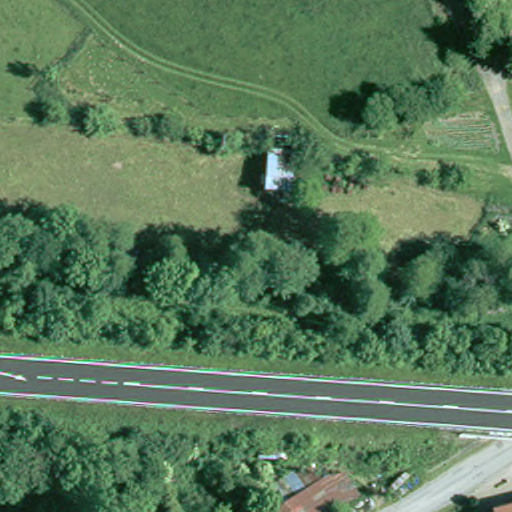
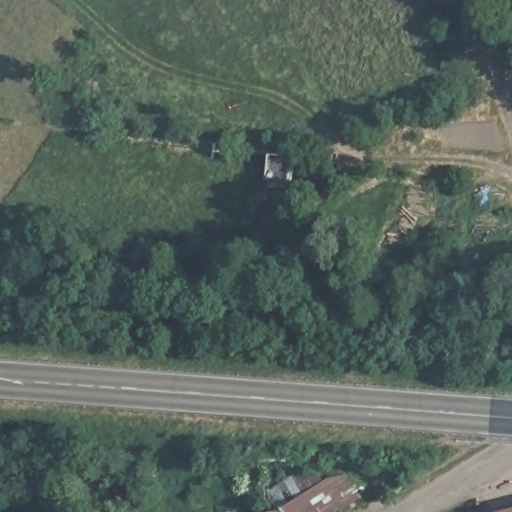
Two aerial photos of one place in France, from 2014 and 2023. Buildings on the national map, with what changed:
unchanged [(347,475),(363,493),(341,512),(320,512),(309,500),(347,475)]
unchanged [(293,511),(309,500),(320,512),(291,512),(293,511)]
unchanged [(512,509),(512,512),(501,512),(512,509)]

